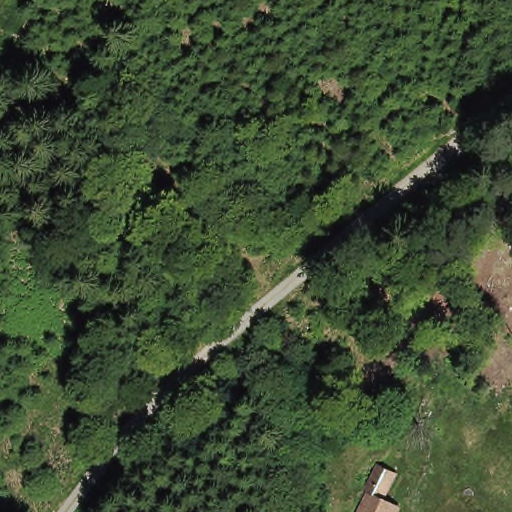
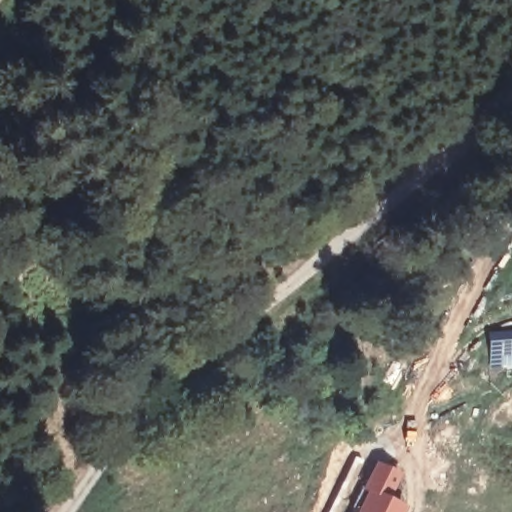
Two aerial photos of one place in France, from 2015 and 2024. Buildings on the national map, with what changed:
unchanged [(404,512),(370,512),(374,499),(364,496),(371,474),(394,481),(386,503),(405,510),(404,512)]

